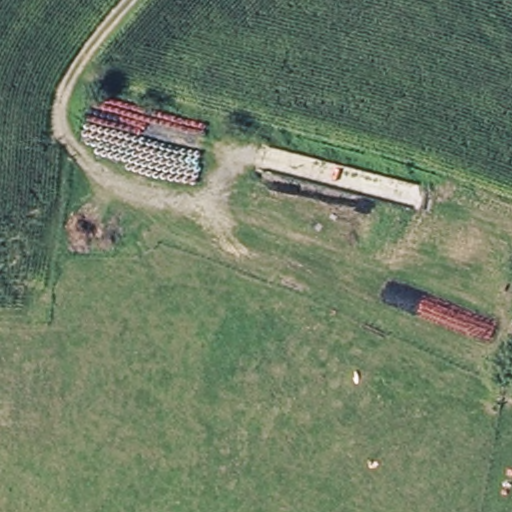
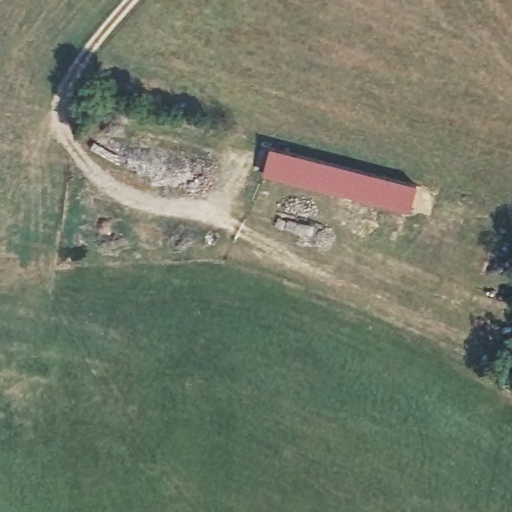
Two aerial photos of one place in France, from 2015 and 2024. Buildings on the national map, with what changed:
new [(416,183),(409,211),(261,171),(269,144),(416,183)]

